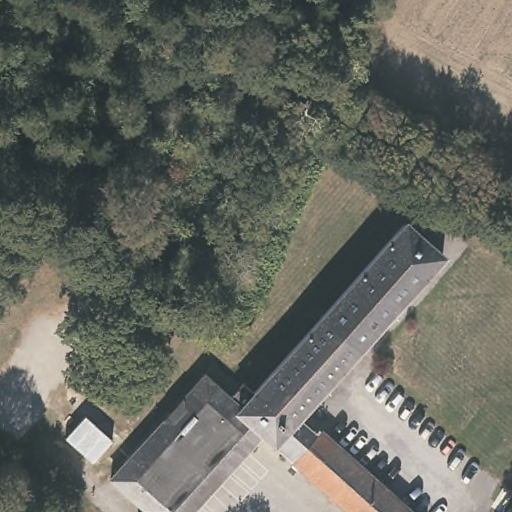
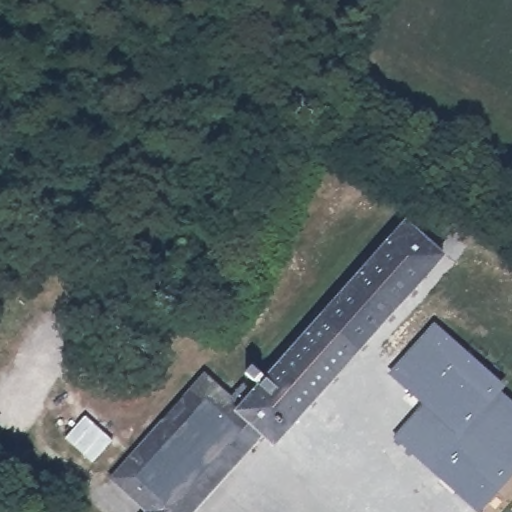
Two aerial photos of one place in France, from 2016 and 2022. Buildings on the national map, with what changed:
unchanged [(389,307),(295,414),(271,444),(259,428),(185,512),(139,512),(143,507),(108,475),(166,409),(170,414),(178,407),(172,401),(201,370),(226,392),(237,377),(250,388),(402,217),(440,250),(389,307)]
new [(425,403),(391,374),(433,323),(500,382),(497,386),(512,400),(512,474),(478,511),(396,437),(425,403)]

